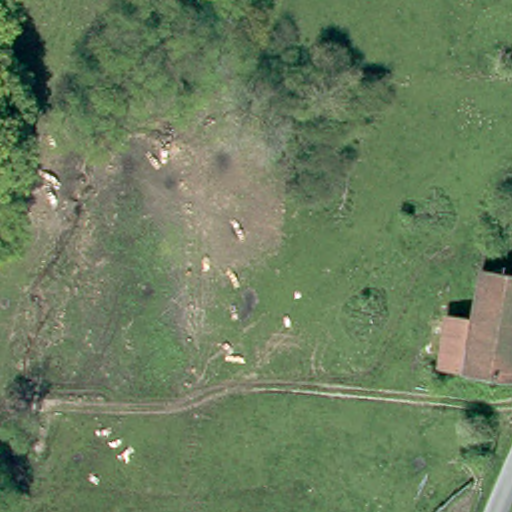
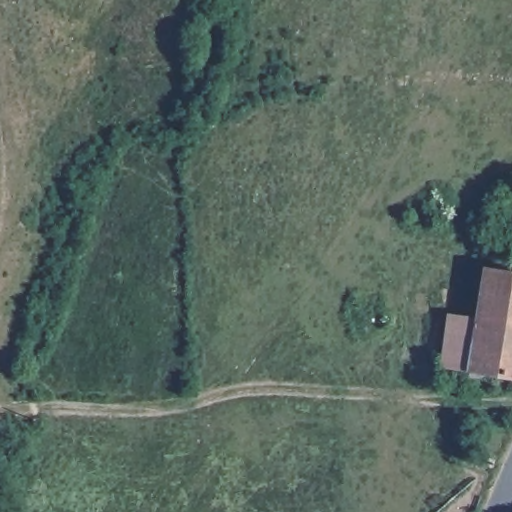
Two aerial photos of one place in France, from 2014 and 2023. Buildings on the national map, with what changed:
unchanged [(512,269),(512,289),(478,287),(480,267),(512,269)]
unchanged [(443,315),(475,314),(478,287),(512,289),(512,373),(442,369),(443,315)]

